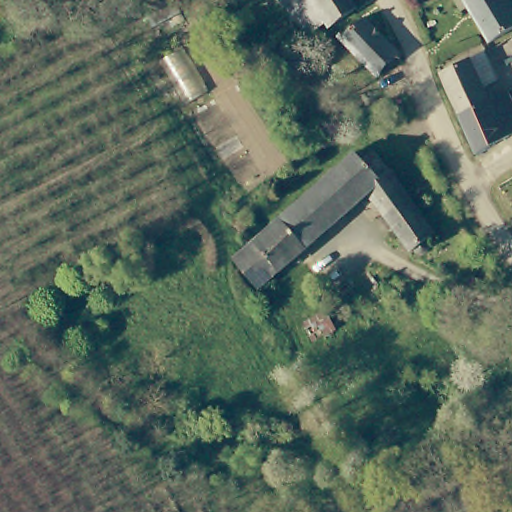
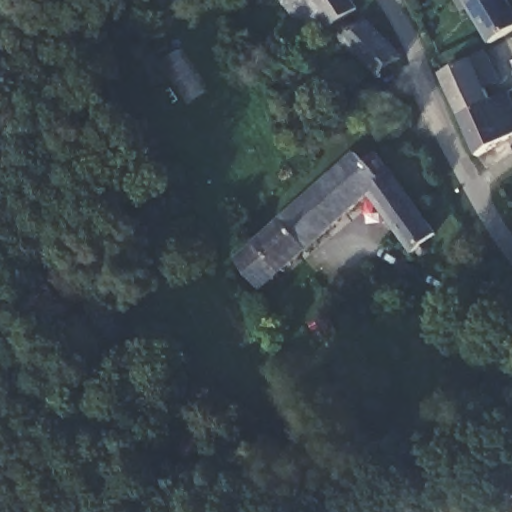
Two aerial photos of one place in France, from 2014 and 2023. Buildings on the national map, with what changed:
unchanged [(223,6),(220,0),(235,0),(223,6)]
unchanged [(356,9),(333,27),(332,28),(326,23),(308,37),(280,0),(350,0),(356,9)]
unchanged [(512,4),(512,30),(489,42),(461,0),(509,0),(512,4)]
unchanged [(378,82),(341,42),(363,15),(402,57),(378,82)]
unchanged [(499,80),(489,87),(496,101),(512,93),(512,137),(480,153),(438,75),(471,61),(485,51),(499,80)]
unchanged [(413,259),(368,199),(281,278),(259,294),(231,264),(347,153),(358,164),(376,152),(445,241),(413,259)]

